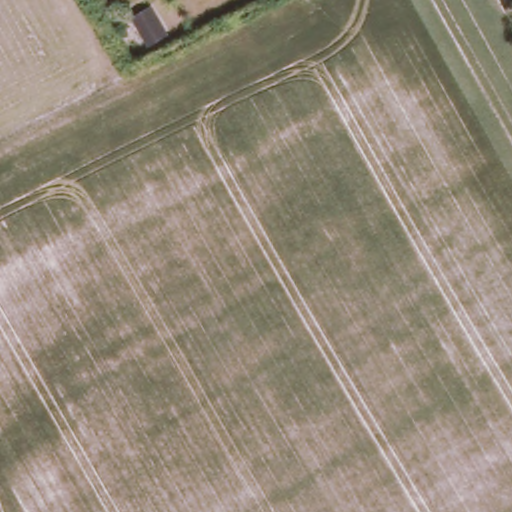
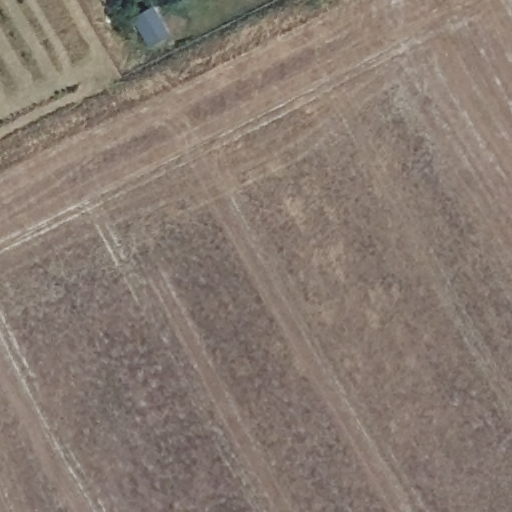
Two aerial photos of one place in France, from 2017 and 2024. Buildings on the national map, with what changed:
unchanged [(135,15),(156,4),(172,33),(151,43),(135,15)]

